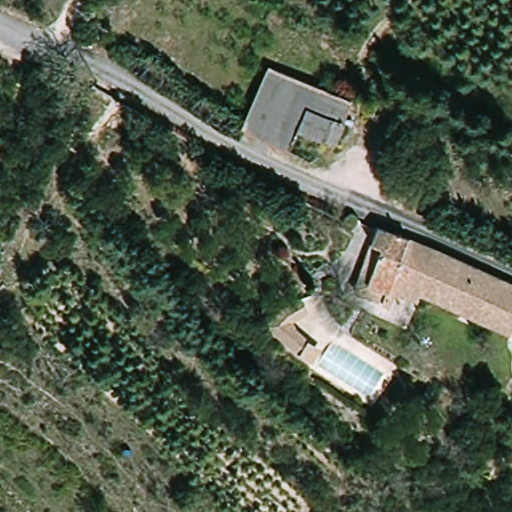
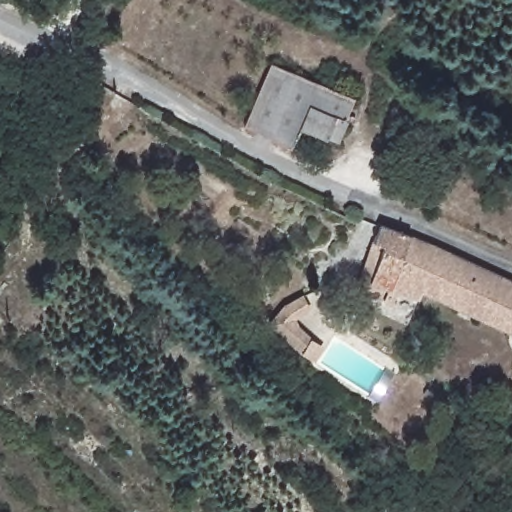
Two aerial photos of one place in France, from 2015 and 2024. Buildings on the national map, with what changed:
unchanged [(357,97),(344,136),(330,134),(328,137),(302,126),(297,141),(250,111),(273,59),(357,97)]
unchanged [(427,286),(425,292),(400,281),(392,301),(382,296),(355,282),(387,217),(512,276),(512,311),(432,276),(427,286)]
unchanged [(432,276),(512,311),(512,324),(439,290),(427,286),(432,276)]
unchanged [(300,312),(299,318),(316,335),(312,338),(323,347),(315,358),(270,317),(290,298),(309,292),(316,307),(300,312)]

